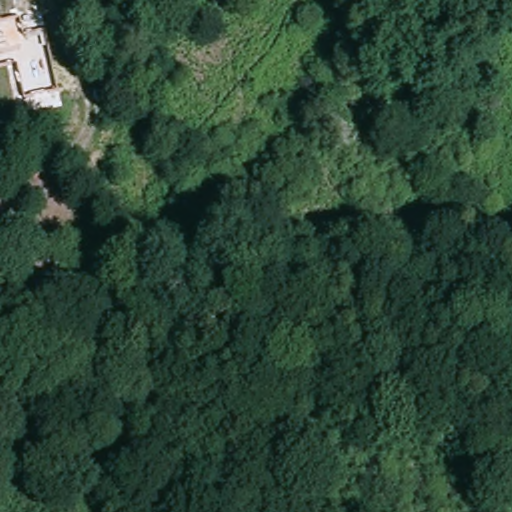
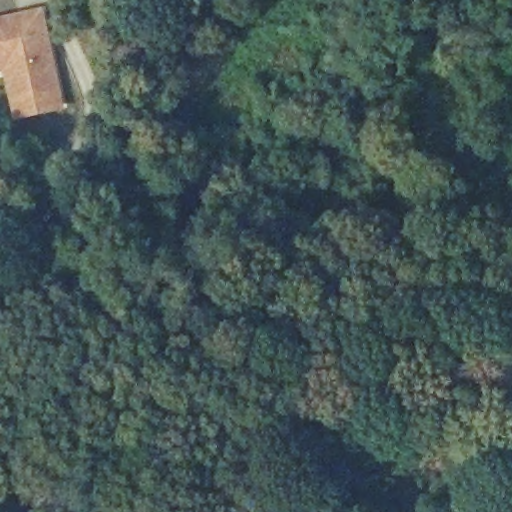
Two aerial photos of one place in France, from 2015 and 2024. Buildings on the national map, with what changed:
new [(66,109),(15,121),(5,68),(0,69),(0,15),(45,4),(66,109)]

